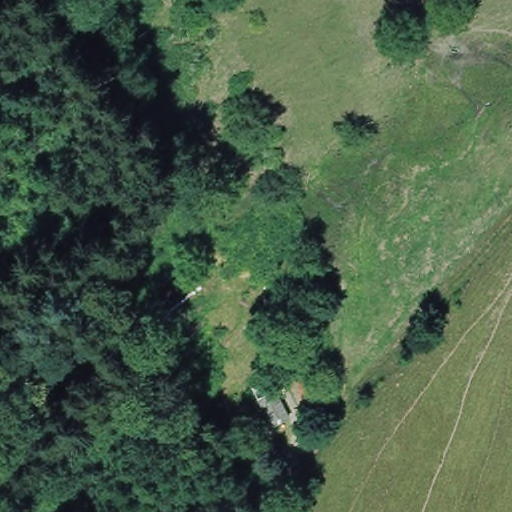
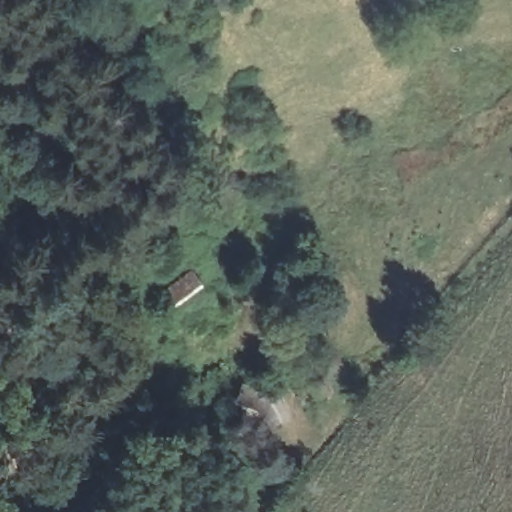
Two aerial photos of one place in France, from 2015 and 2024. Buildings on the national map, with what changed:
unchanged [(206,290),(178,310),(163,294),(191,269),(206,290)]
unchanged [(290,417),(274,425),(261,400),(276,392),(290,417)]

